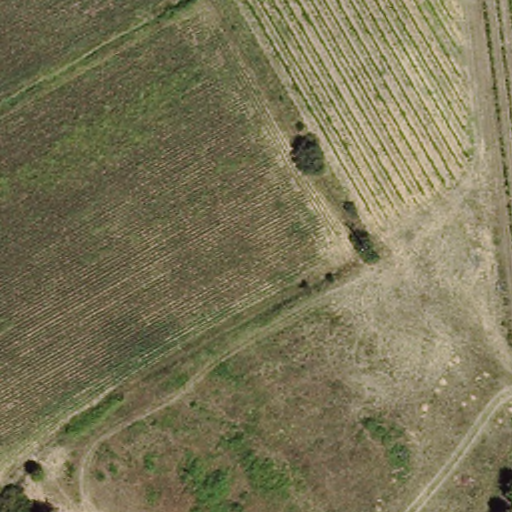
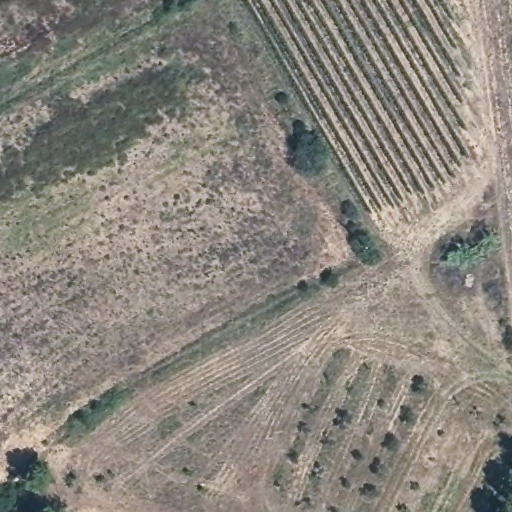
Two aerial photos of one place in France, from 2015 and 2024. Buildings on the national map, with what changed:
[]

